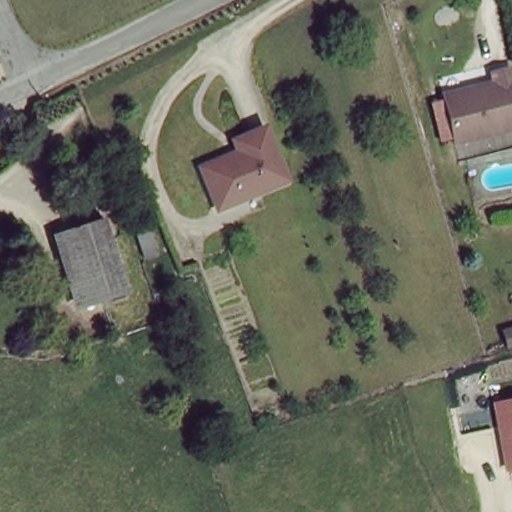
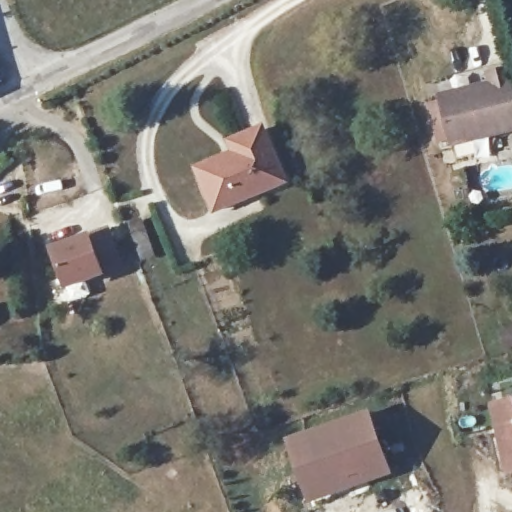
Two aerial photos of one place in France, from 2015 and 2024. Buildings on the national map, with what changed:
unchanged [(484,79),(482,70),(500,65),(512,111),(512,123),(447,141),(433,92),(484,79)]
unchanged [(233,155),(225,137),(257,122),(280,176),(211,207),(196,172),(233,155)]
new [(103,212),(118,255),(63,276),(47,233),(103,212)]
unchanged [(133,222),(144,219),(156,254),(145,257),(133,222)]
unchanged [(504,471),(490,402),(512,398),(512,469),(504,471)]
new [(287,439),(369,408),(392,473),(308,502),(287,439)]

